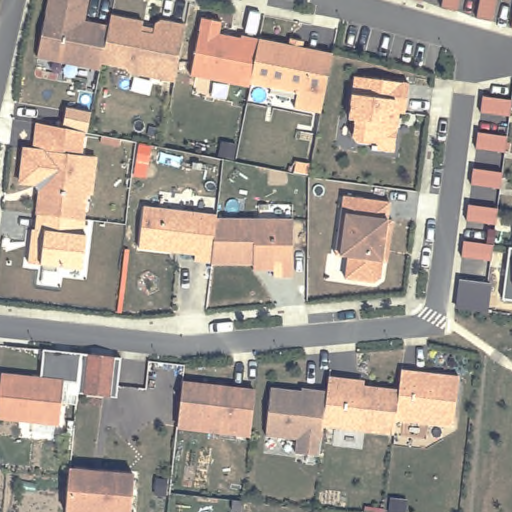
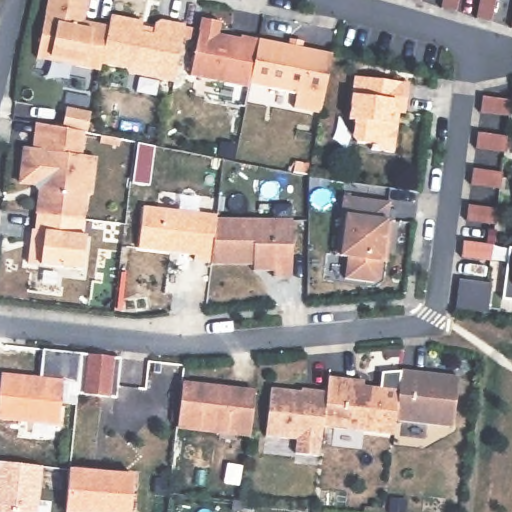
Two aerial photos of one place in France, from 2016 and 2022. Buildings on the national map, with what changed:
unchanged [(102,64),(100,70),(76,65),(72,59),(58,57),(52,61),(37,58),(49,0),(88,0),(84,22),(109,27),(106,41),(102,64)]
unchanged [(411,0),(423,0),(423,3),(411,0)]
unchanged [(461,0),(458,13),(442,9),(443,0),(461,0)]
unchanged [(498,0),(493,23),(477,19),(480,0),(498,0)]
unchanged [(130,74),(126,69),(102,64),(106,41),(109,27),(111,16),(143,23),(141,33),(153,35),(155,25),(161,21),(185,26),(174,83),(130,74)]
unchanged [(191,77),(202,20),(221,24),(218,40),(224,42),(225,37),(241,40),(241,38),(259,41),(258,48),(253,70),(250,85),(250,89),(191,77)]
unchanged [(294,109),(297,94),(250,85),(253,70),(258,48),(259,41),(332,55),(323,102),(321,114),(294,109)]
unchanged [(409,84),(405,114),(399,114),(394,154),(372,150),(372,145),(357,144),(353,138),(355,121),(349,120),(355,78),(409,84)]
unchanged [(481,114),(483,99),(512,102),(510,118),(481,114)]
unchanged [(96,197),(91,195),(88,221),(42,215),(46,187),(25,184),(29,150),(39,151),(42,124),(66,129),(62,128),(67,106),(92,111),(88,133),(85,157),(100,159),(96,197)]
unchanged [(478,134),(507,138),(505,153),(476,149),(478,134)]
unchanged [(473,170),(502,174),(500,189),(471,185),(473,170)]
unchanged [(31,228),(34,228),(40,185),(46,187),(42,215),(85,220),(86,234),(82,270),(39,264),(29,262),(31,228)]
unchanged [(390,204),(388,221),(393,222),(389,249),(384,248),(380,279),(375,284),(345,279),(348,258),(336,257),(341,216),(344,198),(390,204)]
unchanged [(468,206),(498,210),(496,225),(466,222),(468,206)]
unchanged [(217,217),(217,220),(214,243),(211,264),(194,262),(195,256),(139,249),(144,208),(217,217)]
unchanged [(211,264),(214,243),(217,220),(293,222),(292,278),(274,278),(274,272),(260,272),(261,266),(211,265),(211,264)]
unchanged [(464,243),(493,246),(491,262),(462,258),(464,243)]
unchanged [(493,284),(490,310),(454,307),(458,279),(493,284)]
unchanged [(64,388),(59,429),(0,422),(0,392),(2,379),(40,384),(44,354),(82,359),(79,389),(64,388)]
unchanged [(121,363),(117,403),(78,399),(79,389),(82,359),(121,363)]
unchanged [(418,373),(417,378),(440,381),(440,376),(459,378),(453,428),(396,421),(396,418),(399,391),(401,371),(418,373)]
unchanged [(326,406),(327,392),(329,378),(364,382),(363,391),(372,393),(373,389),(399,391),(396,418),(396,421),(394,436),(323,428),(324,424),(324,419),(326,406)]
unchanged [(182,385),(255,393),(251,436),(177,428),(182,385)]
unchanged [(326,406),(324,419),(324,424),(323,428),(320,457),(296,454),(298,439),(266,436),(271,389),(305,393),(305,394),(310,395),(311,390),(327,392),(326,406)]
new [(44,466),(38,512),(0,512),(0,461),(44,466)]
unchanged [(138,512),(81,512),(57,509),(60,471),(123,476),(140,477),(138,512)]

